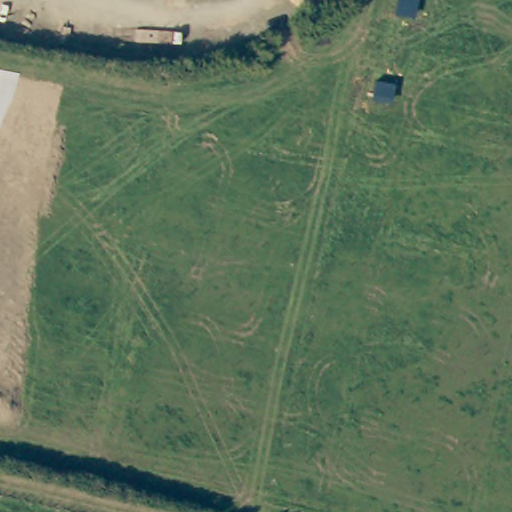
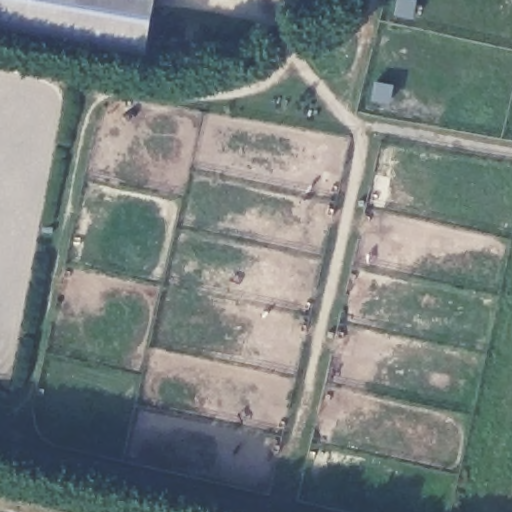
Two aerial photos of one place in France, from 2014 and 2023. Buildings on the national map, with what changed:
new [(0,39),(0,0),(157,0),(145,63),(0,39)]

